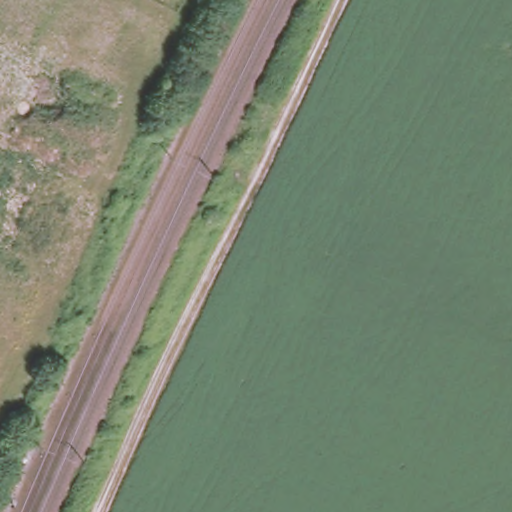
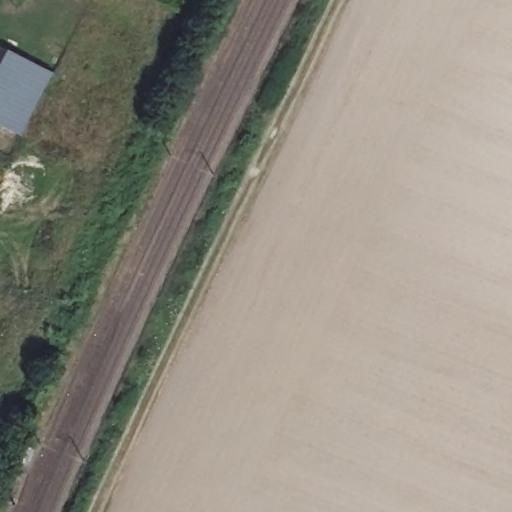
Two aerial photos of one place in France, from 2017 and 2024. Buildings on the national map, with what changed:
new [(52,72),(20,135),(0,125),(0,62),(7,48),(52,72)]

